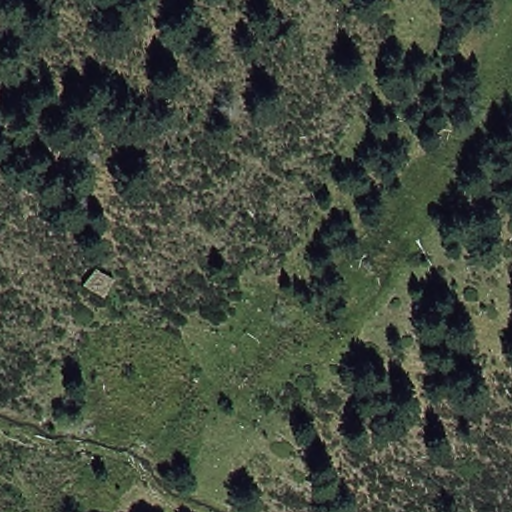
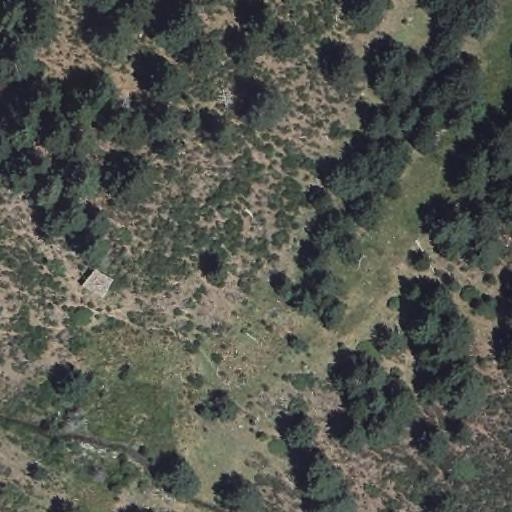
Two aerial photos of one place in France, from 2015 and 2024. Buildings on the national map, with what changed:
unchanged [(93,265),(113,279),(103,301),(80,288),(93,265)]

